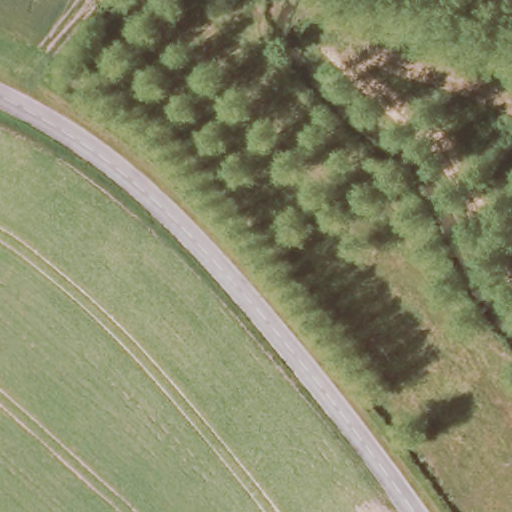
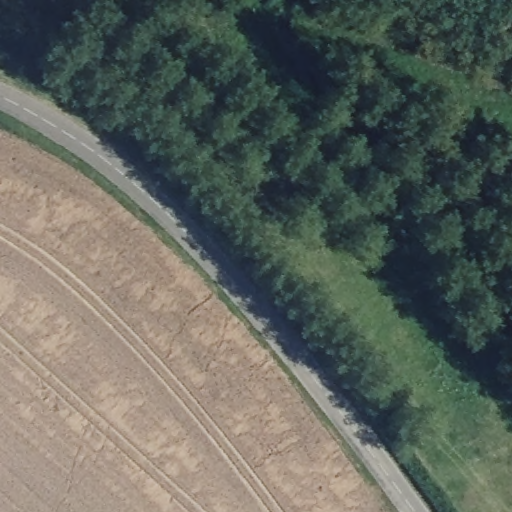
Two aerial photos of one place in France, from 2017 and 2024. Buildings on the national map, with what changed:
[]

